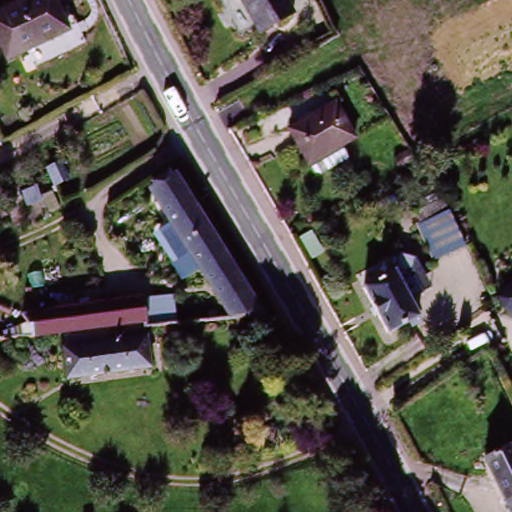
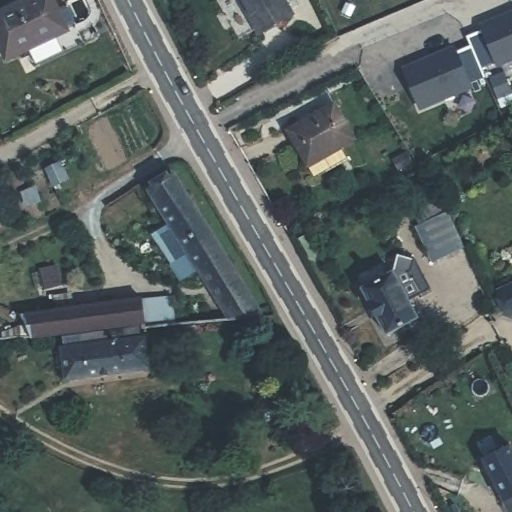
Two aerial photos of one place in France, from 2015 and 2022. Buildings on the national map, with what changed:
unchanged [(28,46),(3,56),(0,47),(0,6),(15,0),(54,0),(65,25),(28,41),(28,46)]
unchanged [(293,16),(261,34),(243,0),(284,0),(293,16)]
demolished [(451,90),(431,49),(512,11),(512,60),(496,69),(451,90)]
new [(507,70),(504,65),(490,71),(494,80),(478,87),(479,92),(426,115),(409,76),(429,67),(431,70),(438,67),(436,65),(459,55),(461,59),(476,51),(472,42),(488,35),(486,31),(509,21),(509,25),(512,23),(512,67),(507,70)]
unchanged [(316,179),(306,172),(281,130),(325,105),(345,140),(333,147),(342,165),(316,179)]
unchanged [(146,190),(171,174),(203,225),(178,240),(146,190)]
unchanged [(409,225),(441,210),(456,240),(424,255),(409,225)]
unchanged [(256,312),(211,315),(221,308),(178,240),(203,225),(256,312)]
unchanged [(407,321),(387,332),(364,287),(392,272),(418,324),(411,328),(407,321)]
unchanged [(511,317),(499,290),(512,284),(512,317),(511,317)]
unchanged [(13,303),(22,315),(140,303),(142,323),(36,335),(0,339),(0,319),(4,317),(0,310),(13,303)]
unchanged [(66,380),(62,350),(126,342),(125,332),(141,330),(143,340),(146,369),(66,380)]
unchanged [(46,408),(43,390),(66,387),(69,405),(46,408)]
unchanged [(512,459),(512,512),(505,512),(477,457),(504,444),(512,459)]

